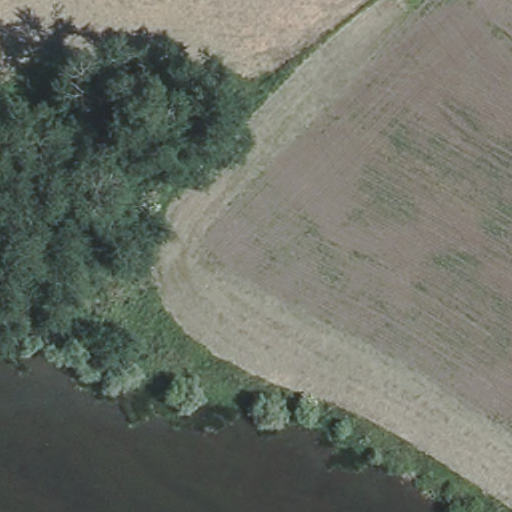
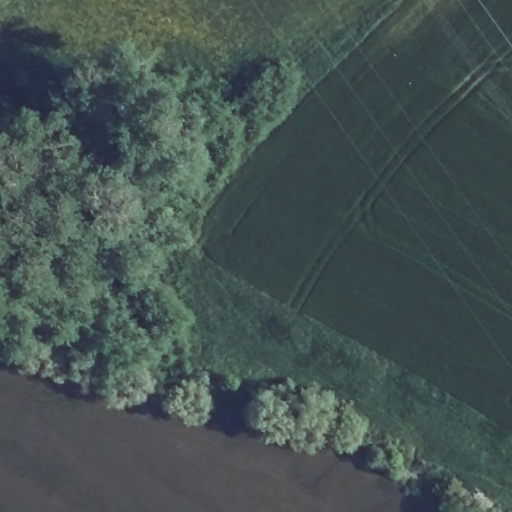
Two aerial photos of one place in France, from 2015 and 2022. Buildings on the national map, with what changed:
[]

